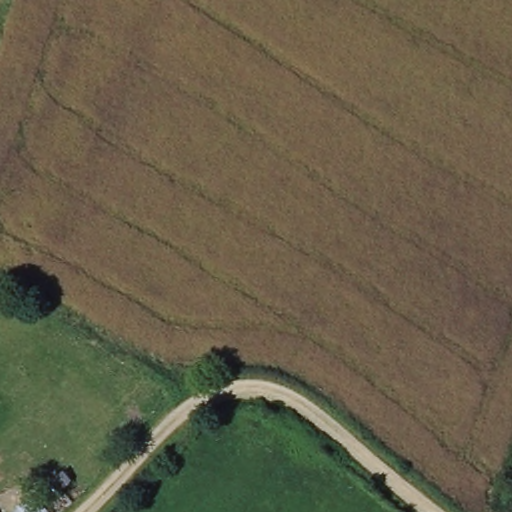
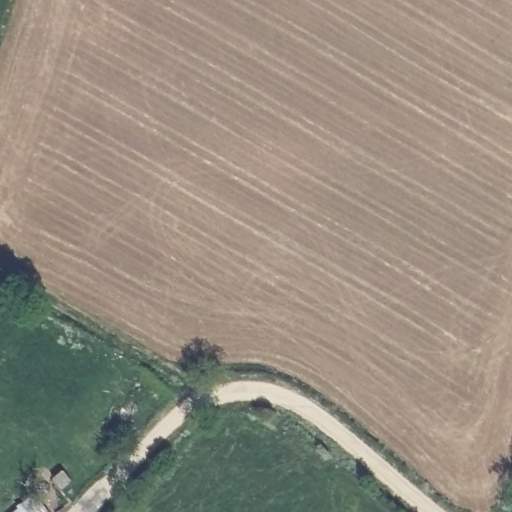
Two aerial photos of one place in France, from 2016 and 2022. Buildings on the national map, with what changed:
unchanged [(71,480),(63,490),(55,482),(63,472),(71,480)]
unchanged [(27,496),(29,493),(46,512),(8,512),(27,496)]

